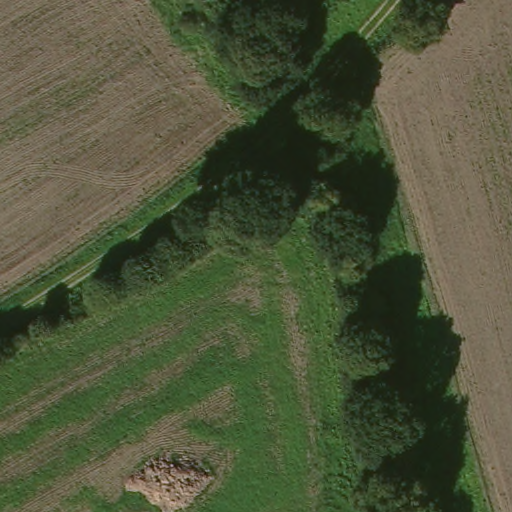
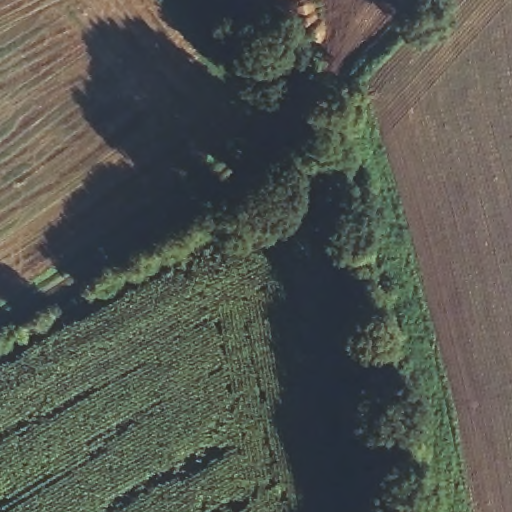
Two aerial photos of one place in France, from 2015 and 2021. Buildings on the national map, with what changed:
[]

